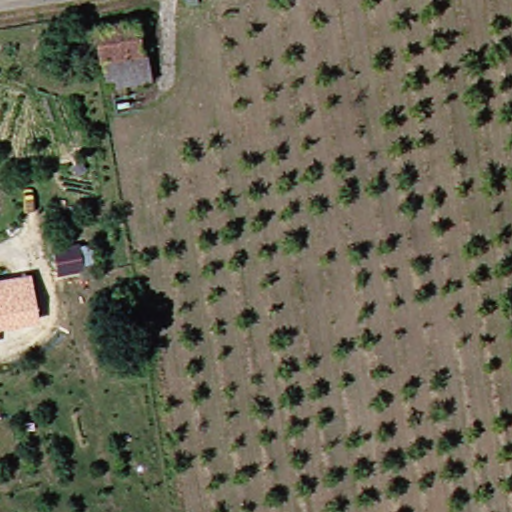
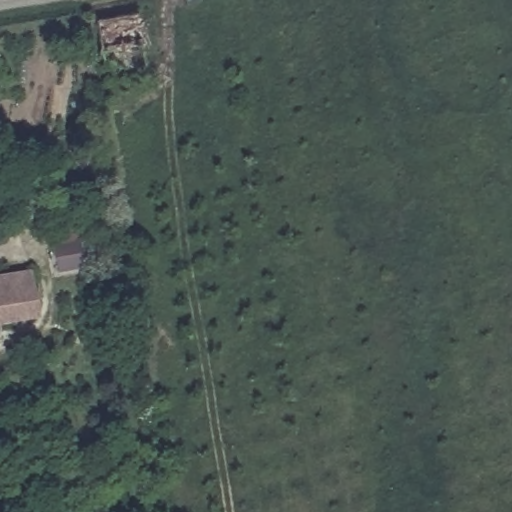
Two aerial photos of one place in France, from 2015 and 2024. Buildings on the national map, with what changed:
unchanged [(90,27),(127,21),(136,79),(100,85),(90,27)]
unchanged [(34,315),(0,320),(0,274),(27,270),(34,315)]

